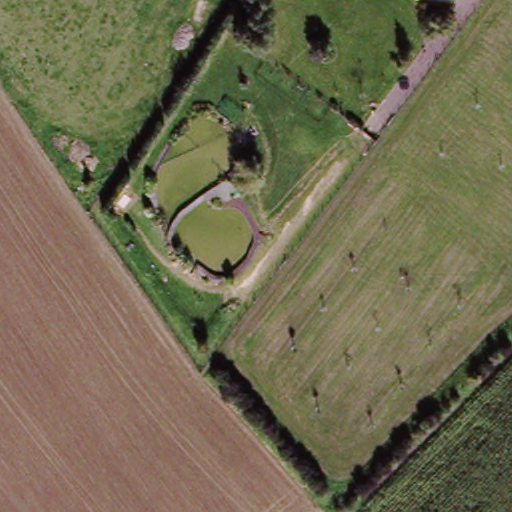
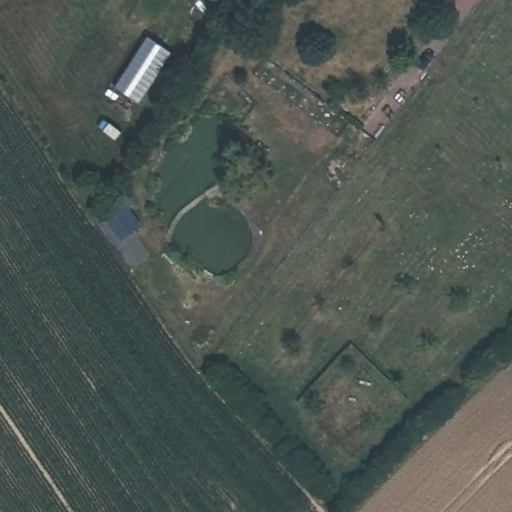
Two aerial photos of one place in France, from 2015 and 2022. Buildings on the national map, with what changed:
new [(217,5),(209,0),(220,0),(217,5)]
new [(173,52),(140,104),(115,88),(147,36),(173,52)]

